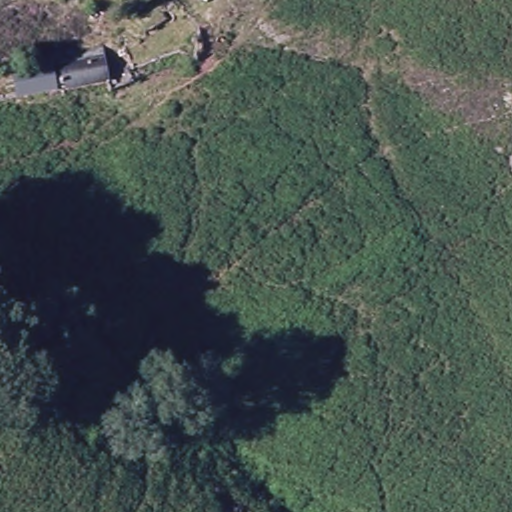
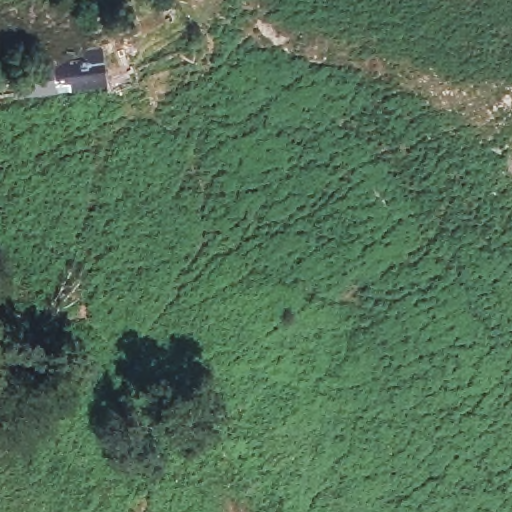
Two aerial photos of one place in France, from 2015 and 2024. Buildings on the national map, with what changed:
unchanged [(114,55),(119,87),(56,97),(53,61),(114,55)]

